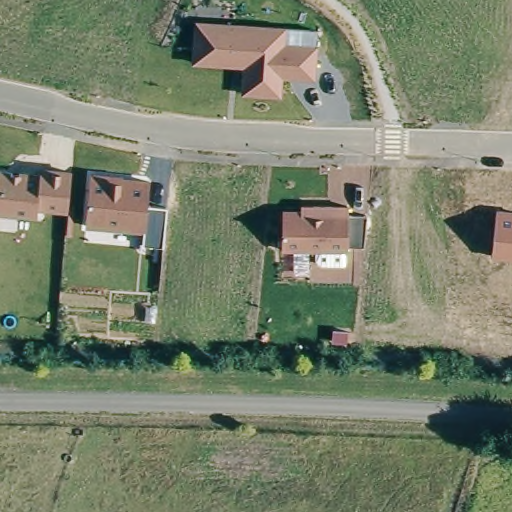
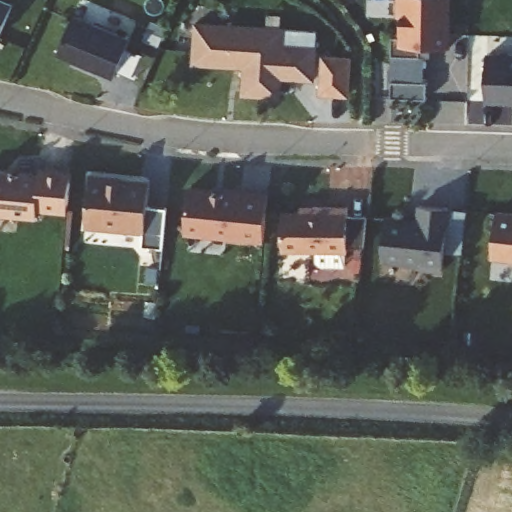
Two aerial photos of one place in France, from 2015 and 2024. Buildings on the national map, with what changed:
new [(450,47),(431,47),(430,56),(425,57),(424,82),(427,82),(427,99),(390,97),(393,37),(400,37),(400,17),(397,19),(398,0),(452,0),(450,47)]
new [(114,79),(58,56),(75,15),(130,39),(114,79)]
unchanged [(315,37),(312,85),(279,83),(277,106),(240,104),(242,71),(229,71),(229,76),(190,72),(194,29),(315,37)]
new [(352,57),(350,97),(319,95),(322,55),(352,57)]
new [(512,61),(512,108),(485,108),(485,61),(512,61)]
unchanged [(150,182),(149,206),(167,208),(163,249),(143,247),(145,232),(85,226),(90,175),(150,182)]
unchanged [(34,225),(0,222),(0,181),(37,185),(37,178),(69,181),(65,220),(35,217),(34,225)]
new [(269,192),(264,242),(185,236),(190,186),(269,192)]
new [(404,219),(403,222),(419,223),(420,204),(450,207),(442,270),(421,268),(422,265),(382,260),(386,217),(404,219)]
unchanged [(512,210),(512,259),(492,257),(497,210),(512,210)]
unchanged [(290,256),(280,256),(280,217),(310,217),(310,212),(345,212),(345,221),(364,222),(361,252),(345,252),(345,256),(342,256),(342,271),(319,271),(315,267),(315,256),(305,256),(306,282),(290,282),(290,256)]

